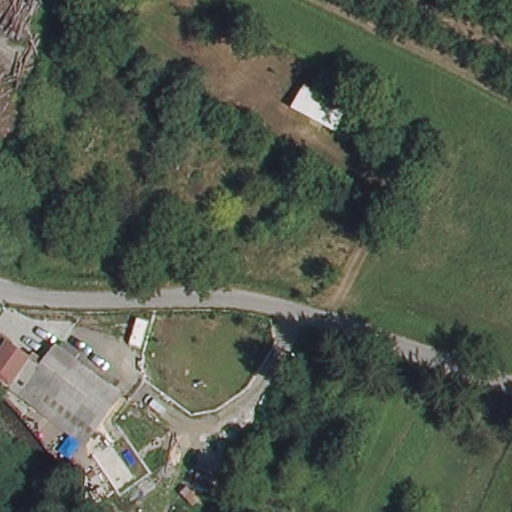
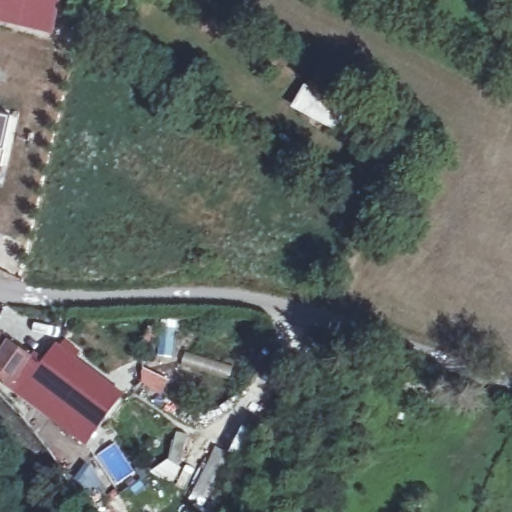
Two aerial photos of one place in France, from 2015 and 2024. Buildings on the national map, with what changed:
new [(53,36),(0,21),(0,0),(62,0),(53,36)]
unchanged [(352,107),(342,124),(305,99),(315,83),(352,107)]
new [(12,119),(1,165),(0,165),(0,115),(12,119)]
unchanged [(6,379),(0,374),(0,338),(24,356),(6,379)]
unchanged [(72,426),(21,388),(51,344),(119,395),(98,424),(87,438),(72,426)]
unchanged [(105,452),(125,487),(110,495),(90,460),(105,452)]

